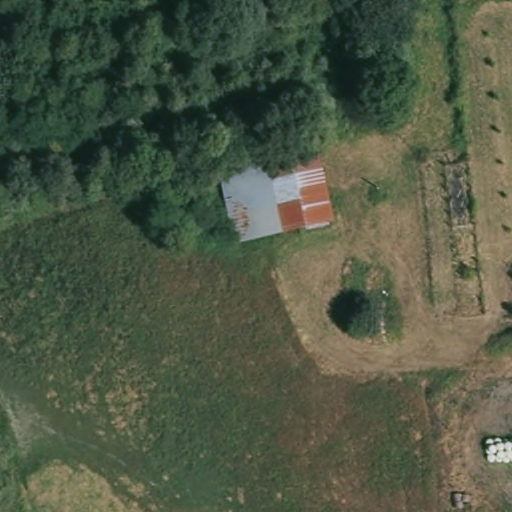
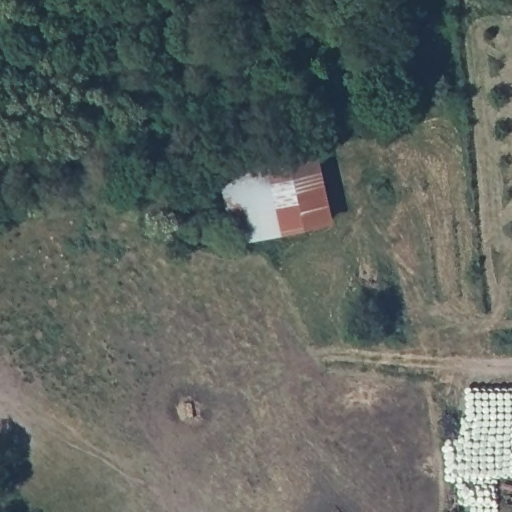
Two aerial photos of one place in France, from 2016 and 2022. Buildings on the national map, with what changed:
unchanged [(318,147),(334,222),(230,246),(215,169),(318,147)]

